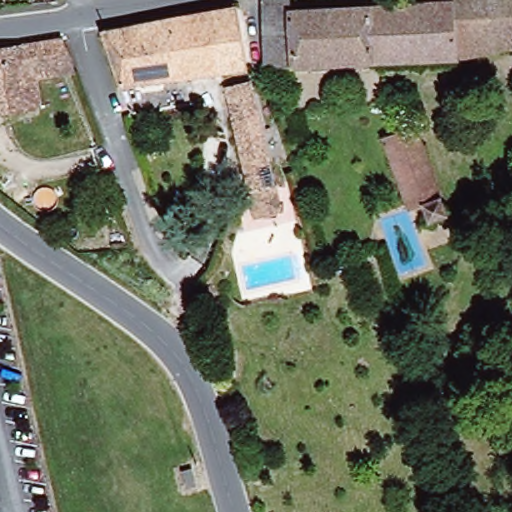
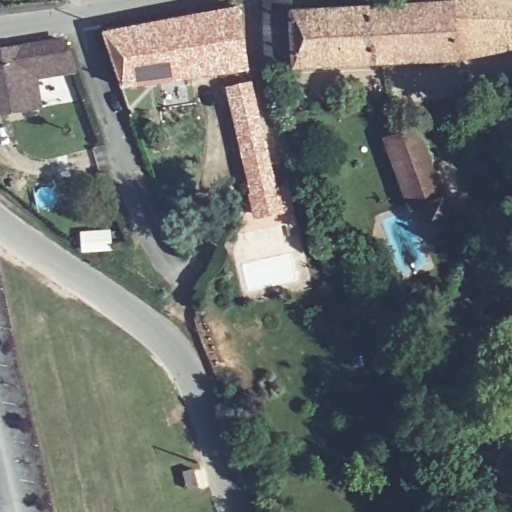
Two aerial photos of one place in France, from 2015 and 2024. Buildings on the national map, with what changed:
unchanged [(267,63),(266,0),(291,0),(292,8),(419,1),(419,0),(512,0),(512,48),(461,56),(267,63)]
unchanged [(124,91),(103,33),(239,4),(250,65),(124,91)]
unchanged [(39,74),(41,104),(30,105),(0,110),(0,45),(60,34),(71,57),(74,69),(39,74)]
unchanged [(251,189),(227,79),(252,74),(278,183),(282,198),(256,204),(251,189)]
unchanged [(437,237),(431,221),(419,225),(387,135),(417,124),(455,230),(437,237)]

